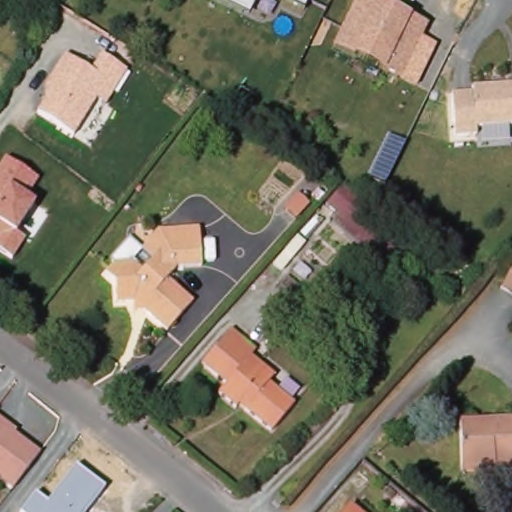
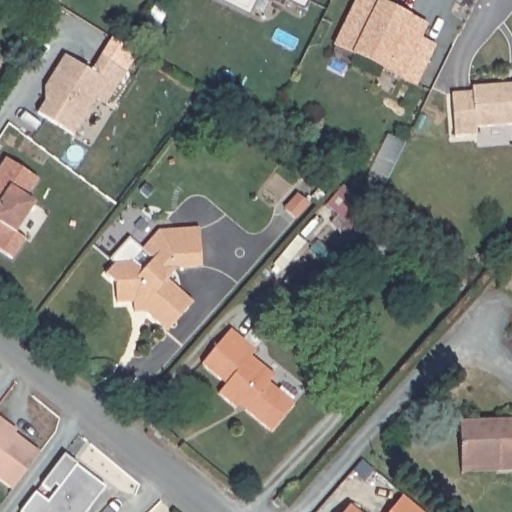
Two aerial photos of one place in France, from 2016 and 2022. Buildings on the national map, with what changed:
unchanged [(248,15),(217,0),(255,0),(248,15)]
unchanged [(303,10),(286,0),(308,0),(303,10)]
unchanged [(401,81),(332,47),(355,0),(378,0),(428,24),(401,81)]
unchanged [(107,105),(96,99),(74,137),(37,114),(44,104),(44,87),(63,55),(89,72),(100,53),(126,71),(107,105)]
unchanged [(475,122),(474,129),(453,129),(453,86),(474,86),(474,81),(512,81),(512,122),(475,122)]
unchanged [(24,200),(34,205),(17,232),(25,237),(13,258),(0,250),(0,166),(4,159),(39,179),(24,200)]
unchanged [(201,265),(177,266),(165,280),(193,301),(165,331),(137,304),(130,307),(129,297),(110,297),(109,282),(99,273),(106,262),(132,261),(141,267),(154,254),(144,245),(160,226),(180,225),(198,224),(201,265)]
unchanged [(501,288),(512,268),(512,294),(501,288)]
unchanged [(229,324),(254,346),(249,352),(273,371),(267,378),(292,397),(269,427),(237,401),(234,405),(217,391),(224,382),(199,362),(229,324)]
unchanged [(8,431),(38,455),(14,487),(0,477),(0,418),(10,426),(8,431)]
unchanged [(459,419),(512,419),(512,468),(498,468),(498,463),(460,465),(459,419)]
unchanged [(48,502),(76,466),(104,489),(87,512),(20,512),(36,492),(48,502)]
unchanged [(281,512),(271,503),(280,492),(289,502),(281,512)]
unchanged [(362,512),(344,512),(351,503),(362,512)]

